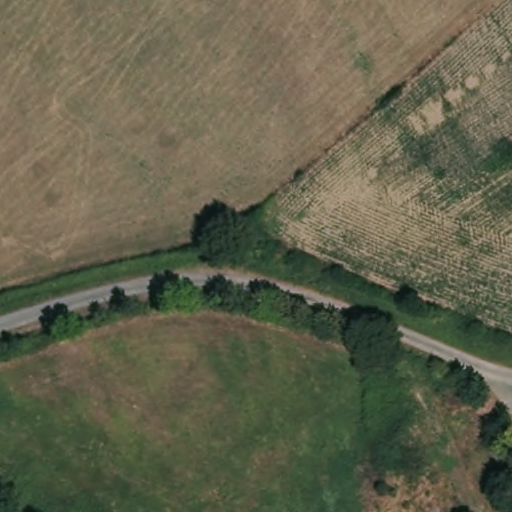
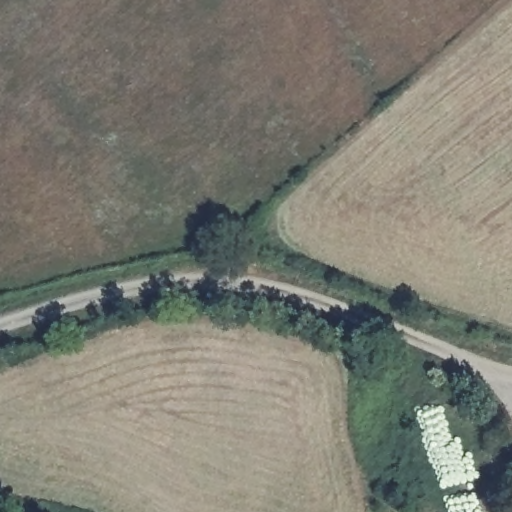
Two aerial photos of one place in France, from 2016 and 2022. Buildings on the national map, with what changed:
[]

